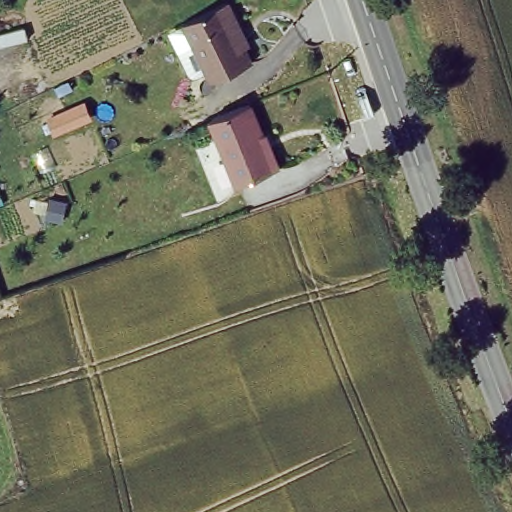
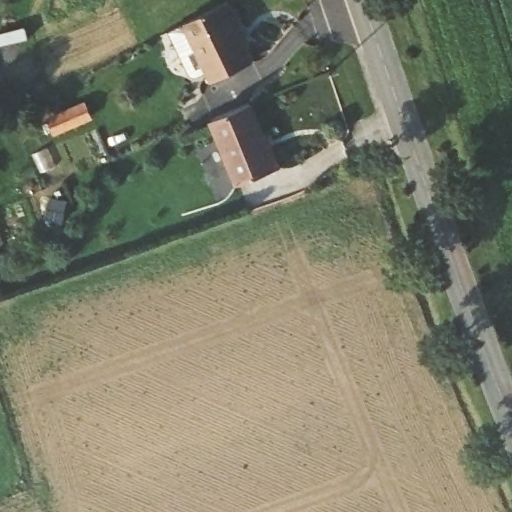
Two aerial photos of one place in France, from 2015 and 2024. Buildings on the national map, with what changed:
unchanged [(220,0),(235,34),(240,32),(253,60),(211,79),(184,17),(220,0)]
unchanged [(95,122),(55,139),(42,117),(86,100),(95,122)]
unchanged [(248,102),(265,145),(267,144),(275,161),(232,179),(209,117),(248,102)]

